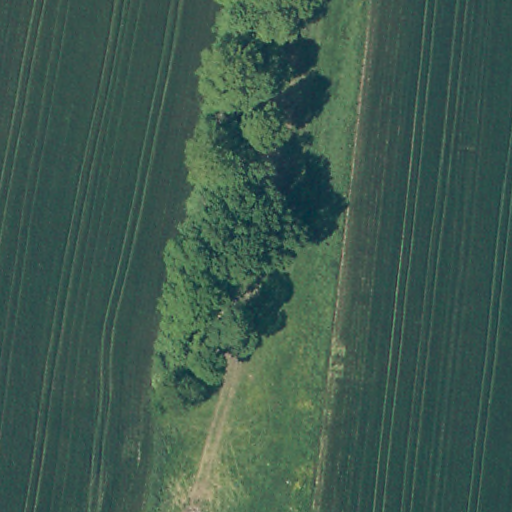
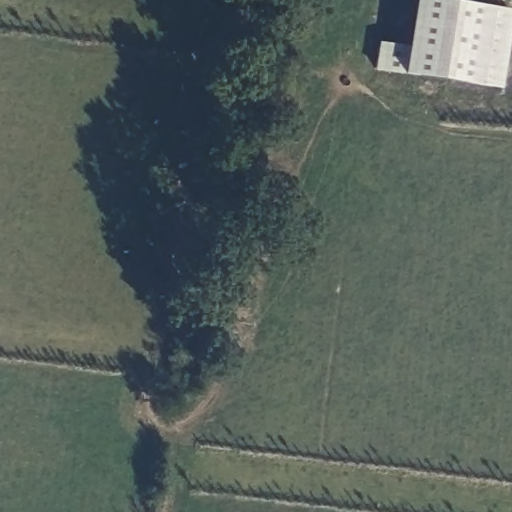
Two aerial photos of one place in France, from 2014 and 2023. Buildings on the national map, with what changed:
new [(498,89),(398,74),(371,70),(376,41),(401,45),(407,0),(444,0),(509,11),(498,89)]

